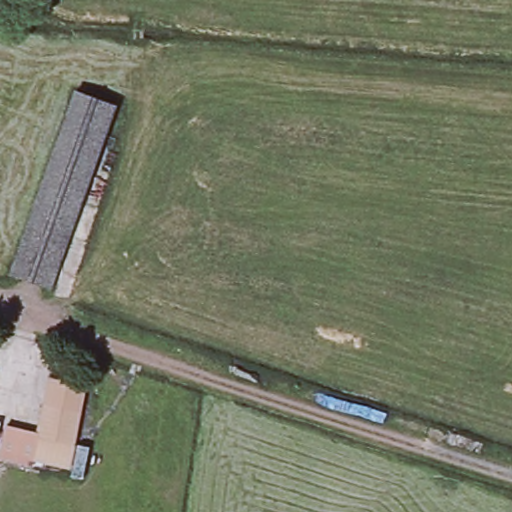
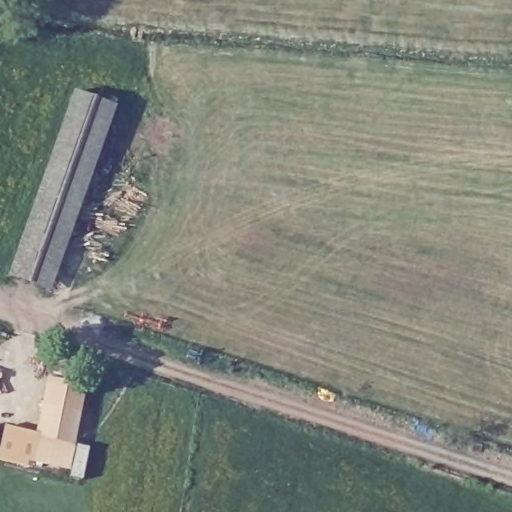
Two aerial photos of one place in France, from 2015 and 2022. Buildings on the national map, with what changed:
unchanged [(75,86),(116,99),(49,284),(8,269),(75,86)]
unchanged [(88,385),(70,469),(34,463),(34,467),(0,460),(0,451),(4,426),(36,433),(48,377),(88,385)]

